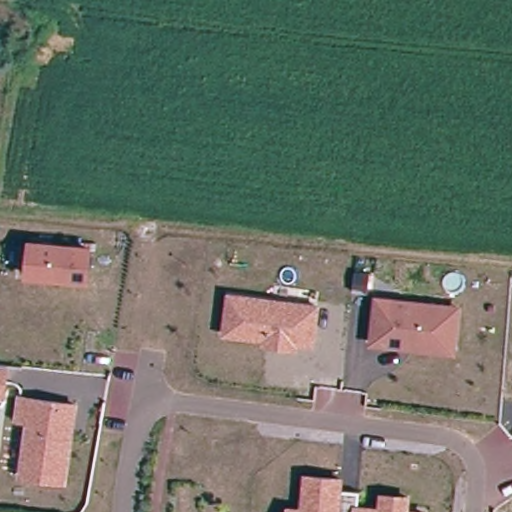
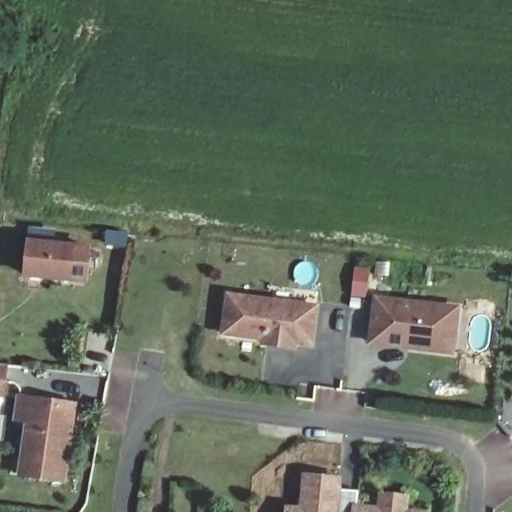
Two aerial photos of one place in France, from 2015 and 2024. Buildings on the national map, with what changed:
unchanged [(90,245),(88,278),(28,274),(31,241),(90,245)]
unchanged [(290,348),(264,345),(265,340),(224,334),(229,295),(273,301),(275,286),(300,289),(298,304),(318,307),(313,346),(296,344),(295,348),(290,348)]
unchanged [(454,352),(405,347),(373,343),(378,299),(444,306),(459,308),(454,352)]
unchanged [(5,395),(0,394),(0,364),(8,365),(5,395)]
unchanged [(21,476),(30,422),(18,420),(21,397),(33,398),(76,405),(74,423),(72,432),(65,483),(21,476)]
unchanged [(341,483),(340,494),(360,496),(359,512),(363,512),(304,512),(308,480),(341,483)]
unchanged [(409,502),(408,512),(383,512),(384,500),(409,502)]

